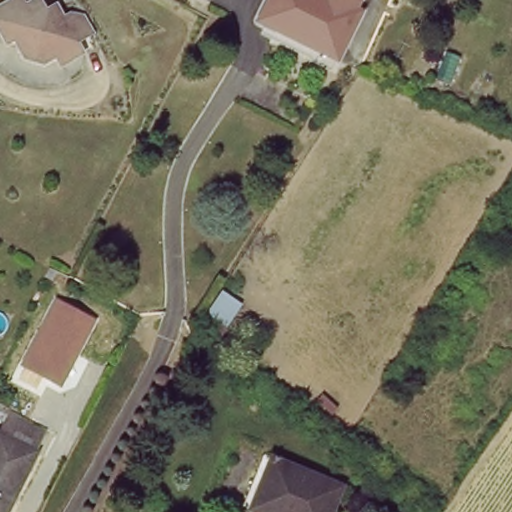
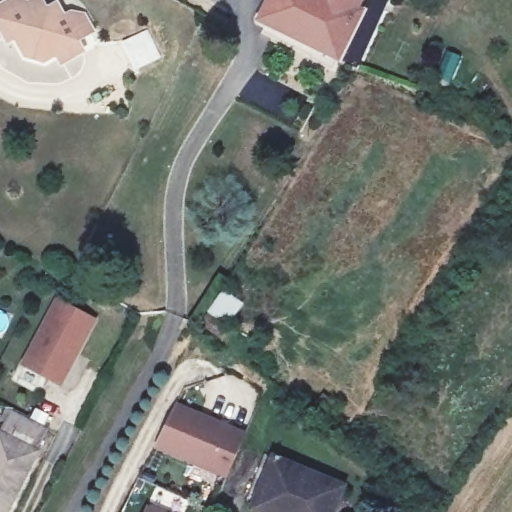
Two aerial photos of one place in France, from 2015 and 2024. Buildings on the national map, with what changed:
unchanged [(57,51),(44,59),(24,57),(13,35),(6,40),(0,30),(0,4),(7,0),(26,0),(27,1),(30,0),(40,0),(45,9),(54,4),(62,16),(74,10),(84,10),(94,27),(74,38),(81,49),(61,60),(57,51)]
unchanged [(259,16),(267,0),(344,0),(321,47),(259,16)]
new [(360,9),(365,11),(341,58),(321,47),(344,0),(364,0),(360,9)]
unchanged [(62,386),(20,365),(57,296),(96,318),(62,386)]
new [(176,402),(245,432),(225,479),(155,450),(176,402)]
unchanged [(24,429),(43,438),(5,512),(0,512),(0,431),(6,420),(24,429)]
unchanged [(343,492),(334,512),(285,512),(286,511),(257,499),(274,461),(343,492)]
new [(162,512),(143,512),(146,505),(162,512)]

